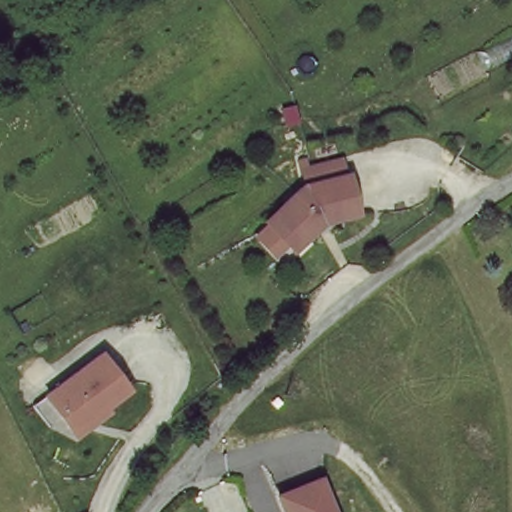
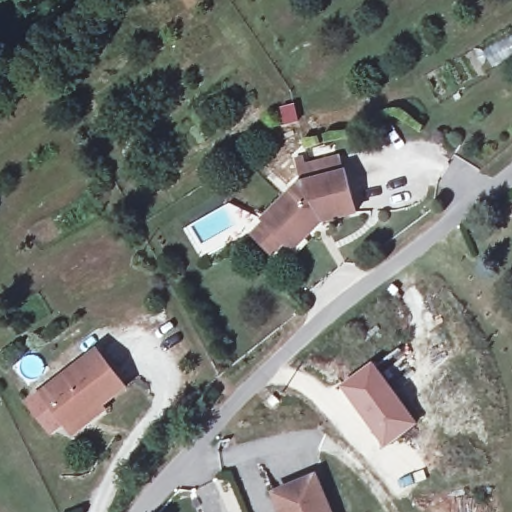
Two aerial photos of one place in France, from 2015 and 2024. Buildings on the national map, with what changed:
unchanged [(252,230),(266,221),(262,215),(302,189),(298,172),(336,163),(339,179),(342,179),(343,182),(352,219),(318,227),(284,250),(278,240),(264,249),(257,239),(252,230)]
unchanged [(123,395),(100,412),(103,416),(71,440),(42,398),(97,357),(123,395)]
new [(386,449),(342,388),(375,365),(418,426),(386,449)]
unchanged [(281,512),(276,497),(288,491),(316,480),(328,512),(281,512)]

